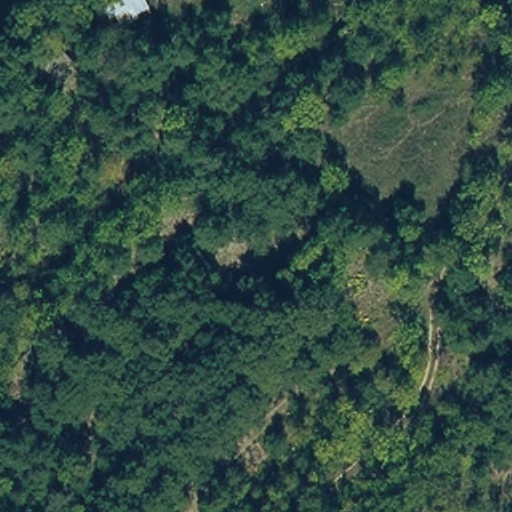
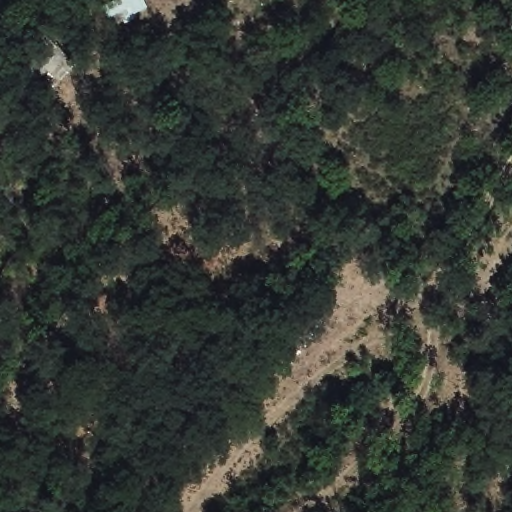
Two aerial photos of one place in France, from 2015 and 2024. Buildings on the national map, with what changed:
unchanged [(147,4),(115,17),(107,2),(110,0),(146,0),(147,4)]
unchanged [(68,69),(52,89),(32,74),(46,50),(68,69)]

